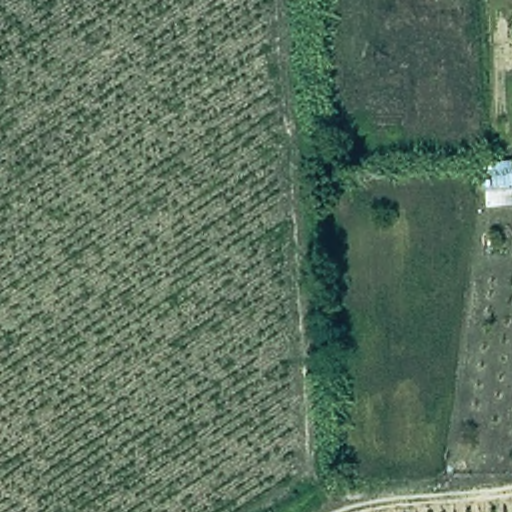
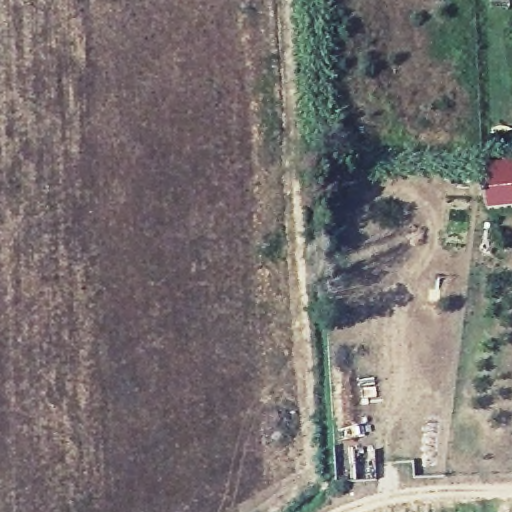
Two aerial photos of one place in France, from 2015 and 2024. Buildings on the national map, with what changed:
unchanged [(512,164),(512,209),(484,211),(482,166),(512,164)]

